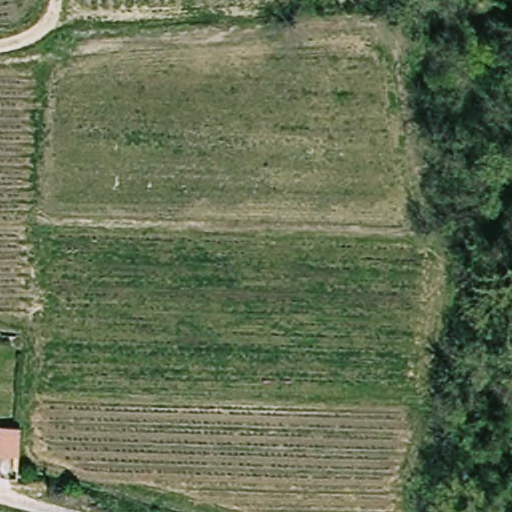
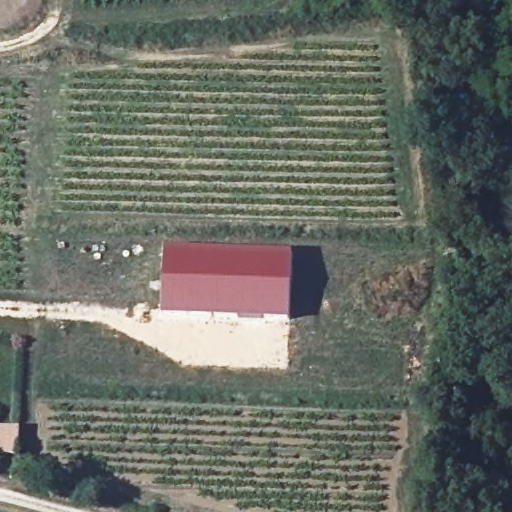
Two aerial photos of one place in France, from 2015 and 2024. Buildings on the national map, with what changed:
new [(289,322),(163,318),(166,248),(292,252),(289,322)]
unchanged [(20,431),(12,458),(0,455),(0,441),(6,425),(20,431)]

